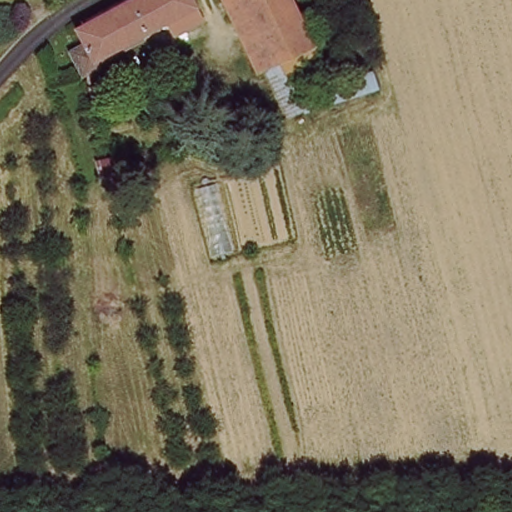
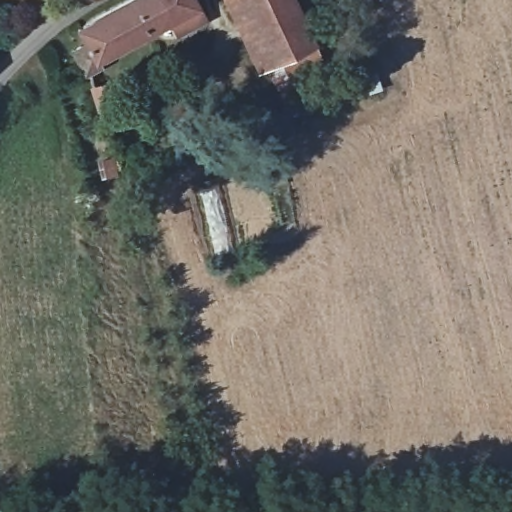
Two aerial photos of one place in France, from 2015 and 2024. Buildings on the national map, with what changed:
unchanged [(95,82),(90,76),(79,57),(91,51),(84,36),(151,0),(195,0),(202,13),(100,66),(106,76),(95,82)]
unchanged [(321,45),(265,72),(231,0),(299,0),(321,45)]
unchanged [(91,90),(109,84),(116,108),(100,113),(91,90)]

